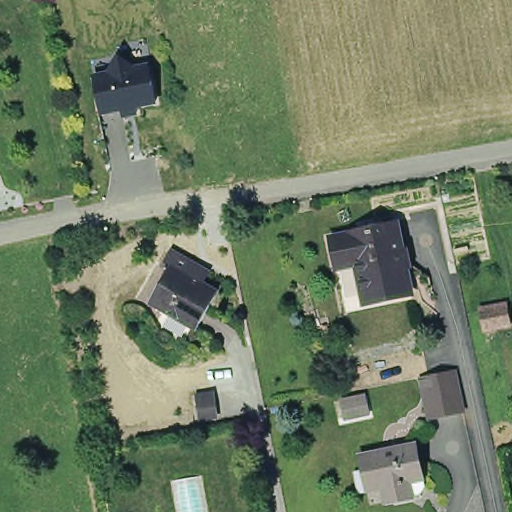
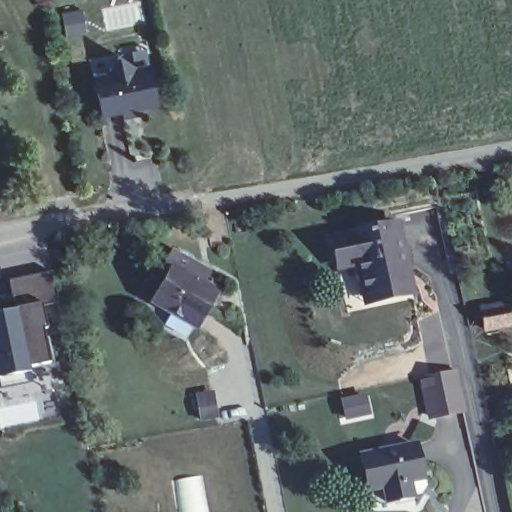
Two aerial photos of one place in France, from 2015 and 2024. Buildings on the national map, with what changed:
unchanged [(152,60),(158,104),(100,114),(92,70),(152,60)]
unchanged [(367,306),(368,312),(349,317),(340,271),(338,262),(335,243),(400,229),(406,253),(414,251),(420,274),(412,275),(414,289),(415,296),(367,306)]
unchanged [(180,273),(173,268),(181,256),(197,266),(216,276),(210,285),(224,295),(202,331),(160,306),(180,273)]
new [(52,269),(58,303),(43,304),(48,324),(42,327),(52,366),(0,376),(0,309),(14,306),(9,280),(52,269)]
unchanged [(450,367),(460,408),(425,415),(416,375),(450,367)]
unchanged [(346,418),(342,402),(363,396),(367,413),(346,418)]
unchanged [(374,478),(368,454),(415,443),(419,461),(426,460),(432,485),(415,489),(419,500),(407,503),(404,502),(390,505),(386,491),(377,493),(374,478)]

